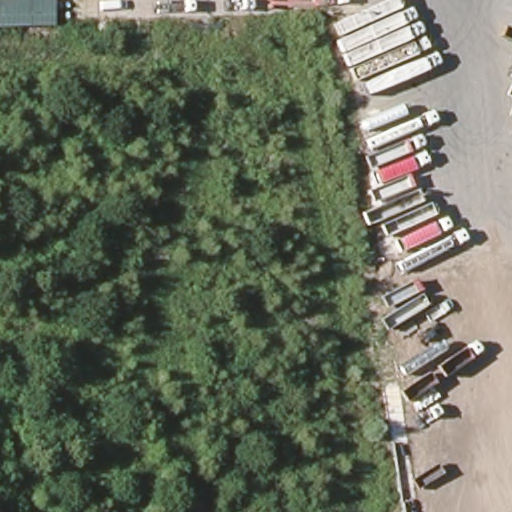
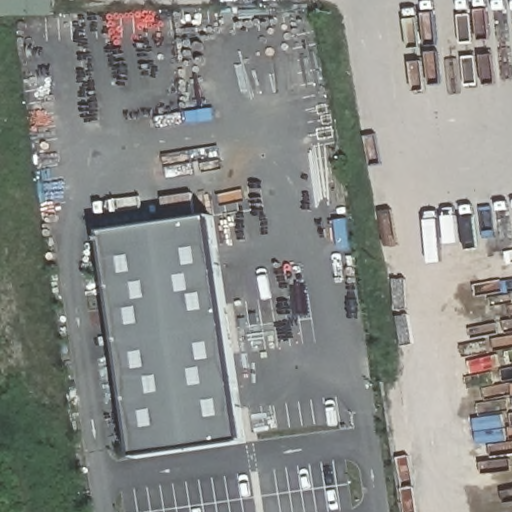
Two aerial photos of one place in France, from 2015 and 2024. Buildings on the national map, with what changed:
new [(55,24),(0,24),(0,0),(55,0),(55,24)]
new [(206,217),(237,437),(132,448),(105,232),(206,217)]

